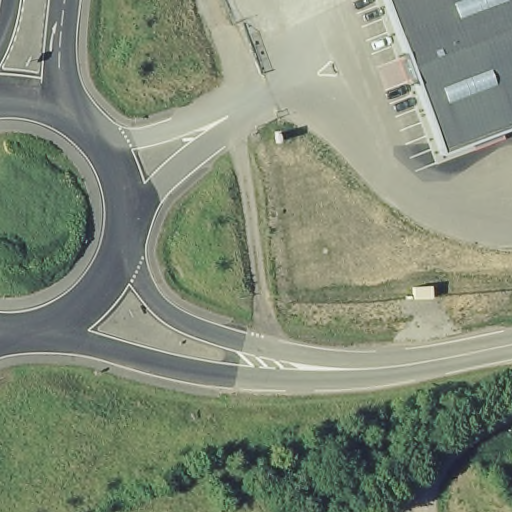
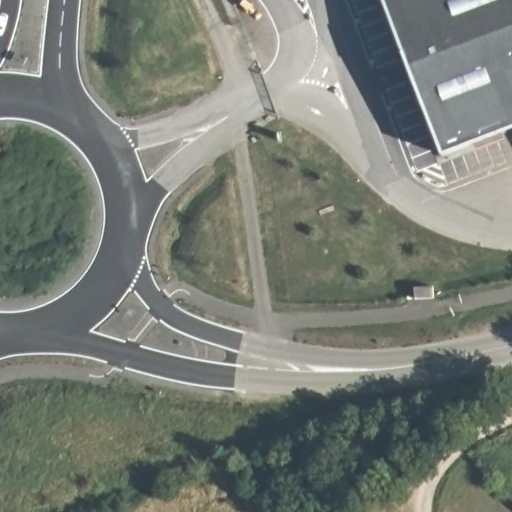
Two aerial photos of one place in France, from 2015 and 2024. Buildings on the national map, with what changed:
unchanged [(390,0),(512,0),(512,128),(485,138),(448,152),(444,140),(390,0)]

